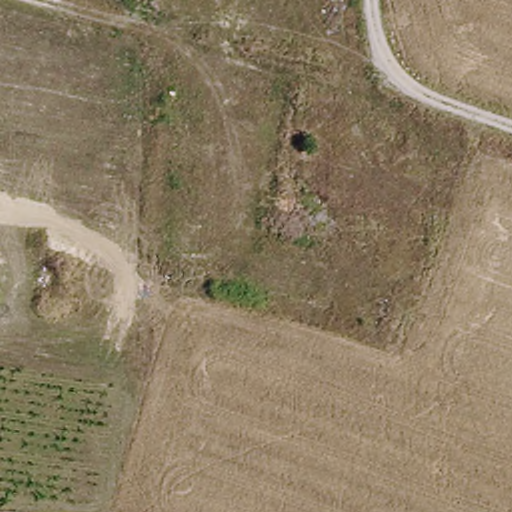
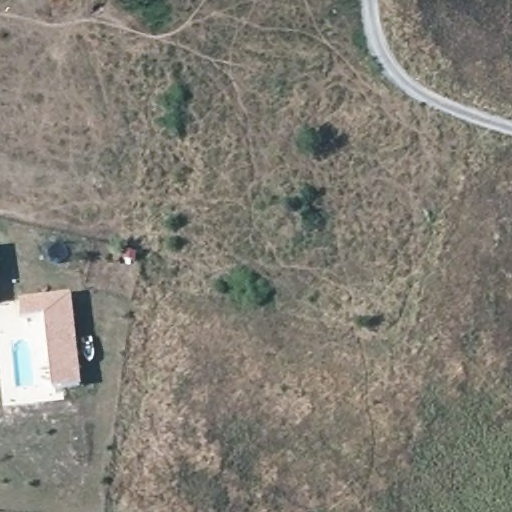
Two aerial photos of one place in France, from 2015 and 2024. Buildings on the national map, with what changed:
new [(54,390),(46,317),(22,322),(20,300),(72,294),(82,387),(54,390)]

